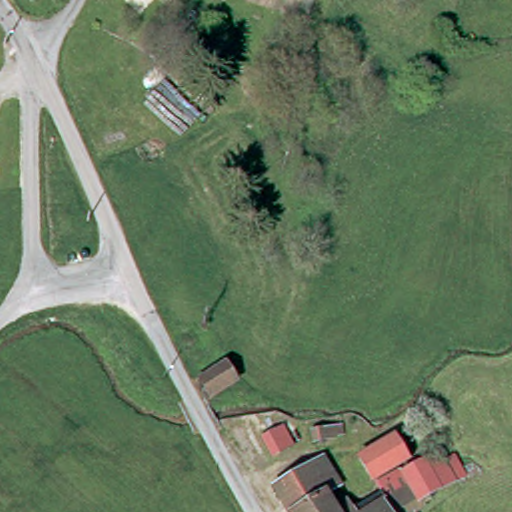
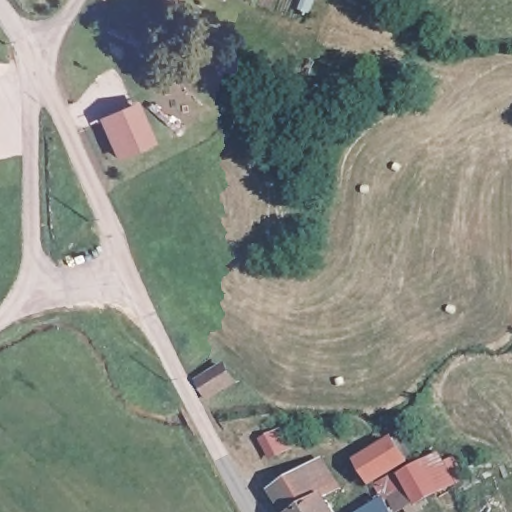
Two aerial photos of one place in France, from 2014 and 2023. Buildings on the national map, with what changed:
new [(157,143),(116,161),(97,120),(137,101),(157,143)]
unchanged [(200,378),(223,362),(235,377),(212,393),(200,378)]
unchanged [(385,424),(405,458),(395,465),(390,459),(367,475),(349,447),(385,424)]
unchanged [(368,476),(367,475),(390,459),(395,465),(405,458),(412,454),(432,485),(417,496),(420,502),(405,512),(392,512),(377,491),(368,476)]
unchanged [(308,461),(327,490),(293,512),(292,512),(274,484),(308,461)]
unchanged [(333,498),(342,492),(352,507),(344,512),(293,512),(327,490),(333,498)]
unchanged [(377,491),(392,512),(344,512),(352,507),(377,491)]

